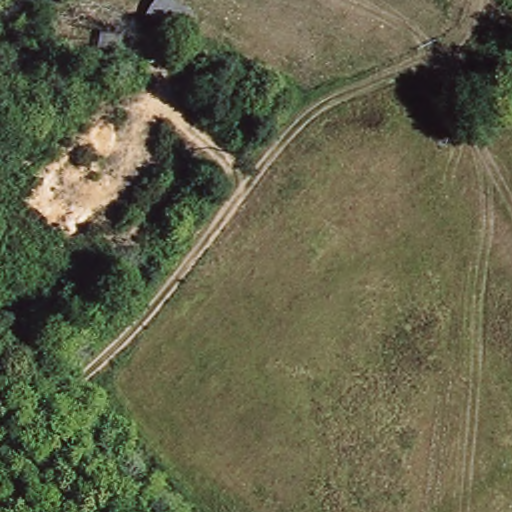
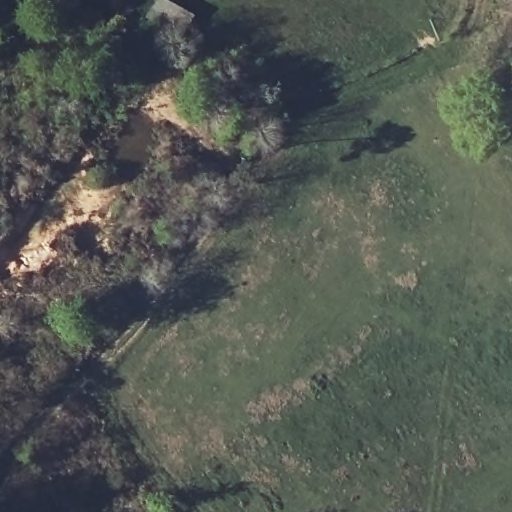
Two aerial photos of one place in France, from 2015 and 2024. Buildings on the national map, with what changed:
unchanged [(140,15),(148,0),(168,0),(190,12),(177,35),(140,15)]

